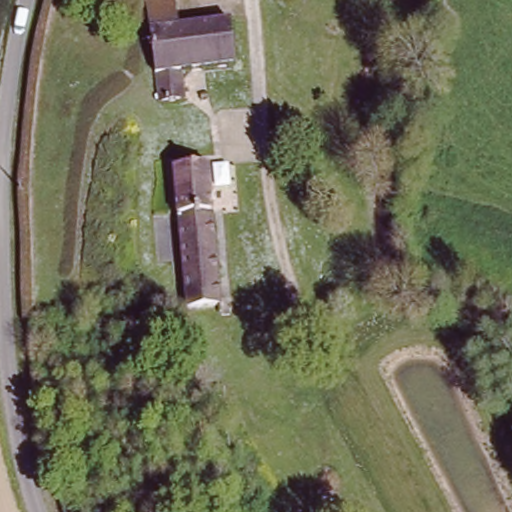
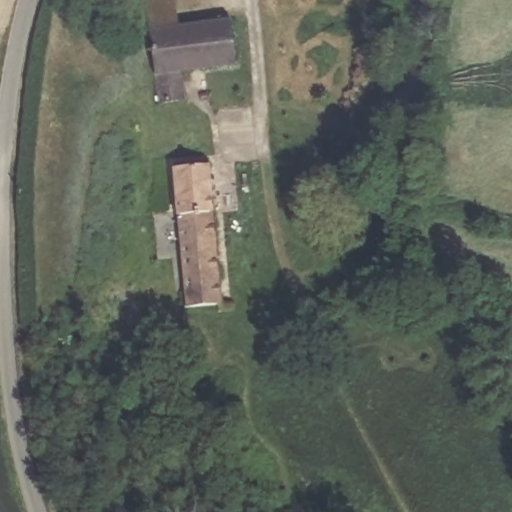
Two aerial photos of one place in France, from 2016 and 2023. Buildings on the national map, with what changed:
unchanged [(237,21),(242,63),(187,71),(191,101),(160,105),(148,7),(147,0),(178,0),(179,3),(182,29),(237,21)]
unchanged [(190,302),(173,172),(209,168),(227,299),(190,302)]

